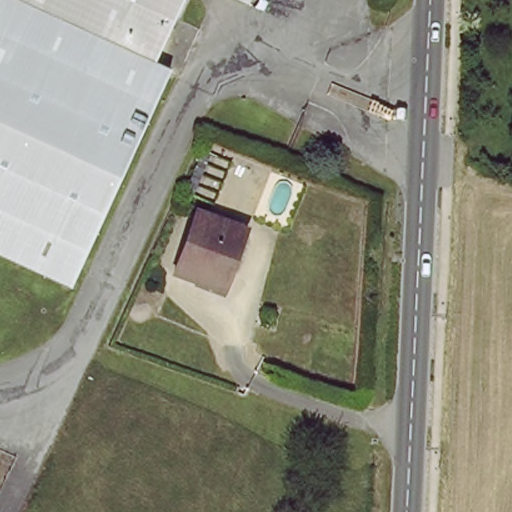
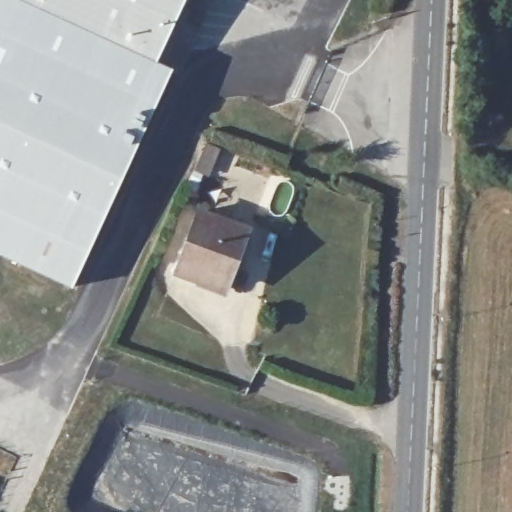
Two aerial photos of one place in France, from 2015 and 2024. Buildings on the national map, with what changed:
unchanged [(154,61),(168,67),(153,101),(154,102),(145,123),(143,123),(71,284),(0,252),(0,0),(182,0),(154,61)]
unchanged [(226,290),(180,273),(202,212),(248,229),(226,290)]

